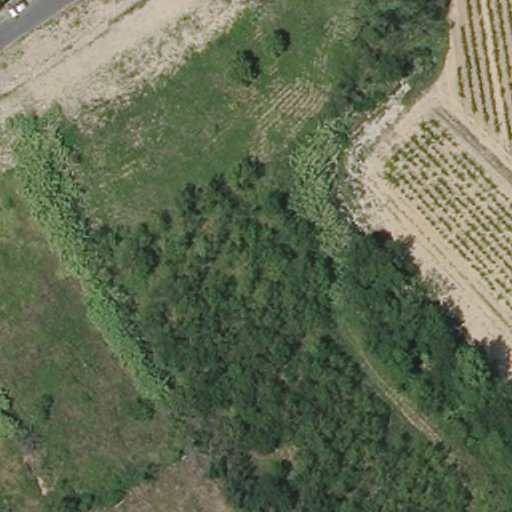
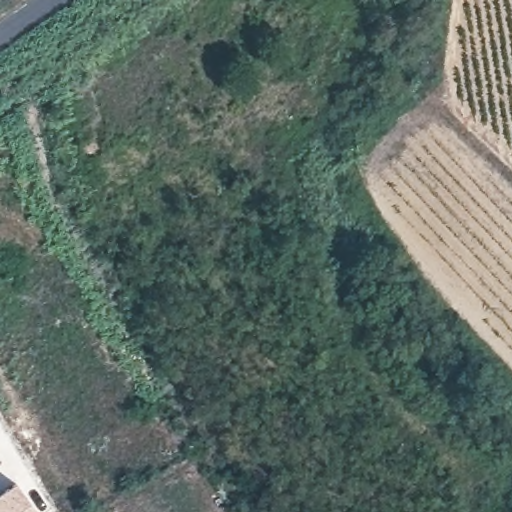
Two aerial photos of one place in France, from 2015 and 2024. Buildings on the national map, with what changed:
new [(38,512),(0,512),(0,493),(16,481),(38,512)]

